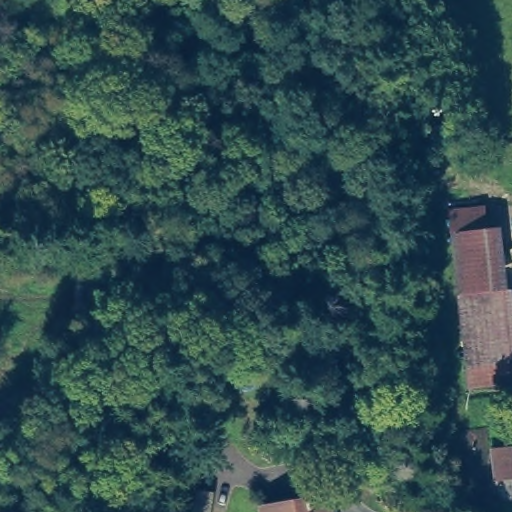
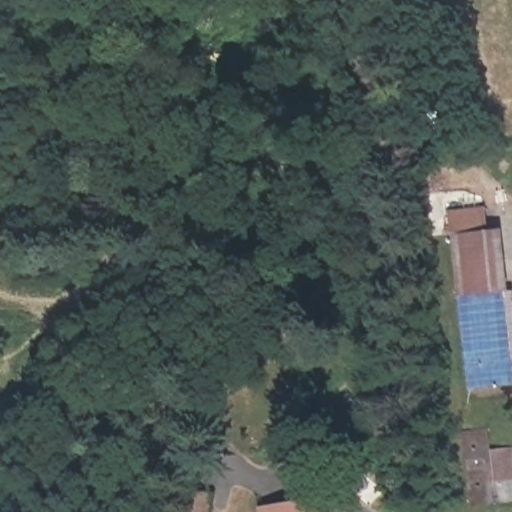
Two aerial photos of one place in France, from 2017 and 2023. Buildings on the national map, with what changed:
unchanged [(416,15),(408,0),(438,0),(441,7),(416,15)]
unchanged [(468,321),(458,232),(492,230),(498,291),(509,289),(512,316),(468,321)]
unchanged [(108,262),(109,311),(78,312),(74,263),(108,262)]
unchanged [(473,368),(468,321),(512,316),(512,364),(473,368)]
unchanged [(212,512),(168,512),(174,482),(216,492),(212,512)]
unchanged [(321,503),(323,512),(273,512),(321,503)]

